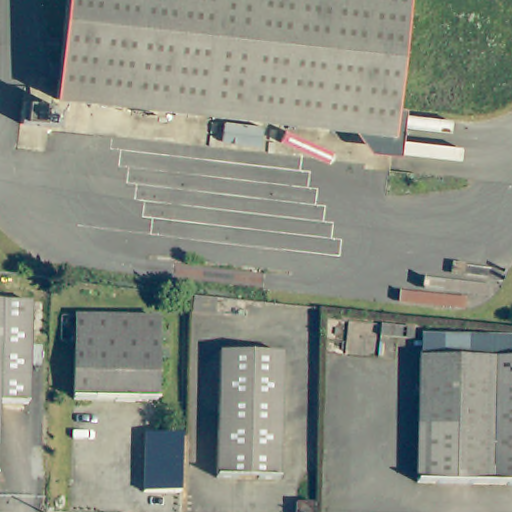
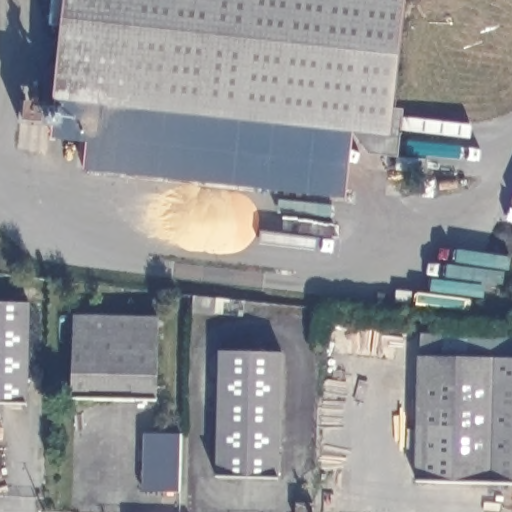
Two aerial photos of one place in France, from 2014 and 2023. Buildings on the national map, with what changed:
unchanged [(56,100),(66,0),(405,0),(392,132),(56,100)]
new [(86,169),(92,104),(392,132),(395,109),(403,109),(398,157),(367,154),(355,136),(347,200),(86,169)]
unchanged [(229,298),(228,315),(205,314),(207,296),(229,298)]
unchanged [(30,299),(30,397),(0,398),(0,298),(30,299)]
unchanged [(159,320),(157,403),(79,401),(79,319),(159,320)]
new [(512,335),(512,357),(457,356),(425,356),(425,333),(512,335)]
unchanged [(282,349),(279,474),(215,472),(217,349),(282,349)]
unchanged [(512,357),(512,485),(453,484),(423,484),(425,356),(457,356),(512,357)]
unchanged [(181,435),(179,494),(142,492),(143,434),(181,435)]

